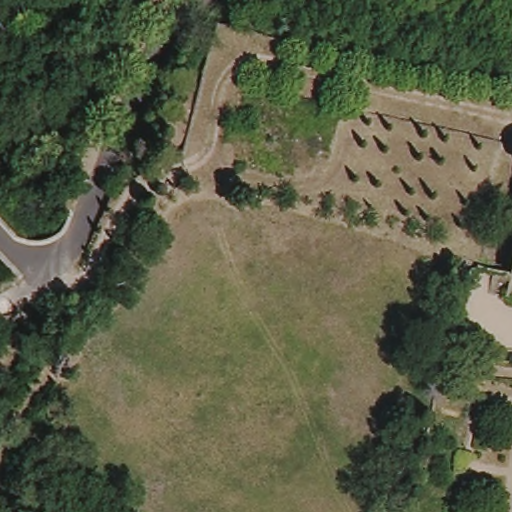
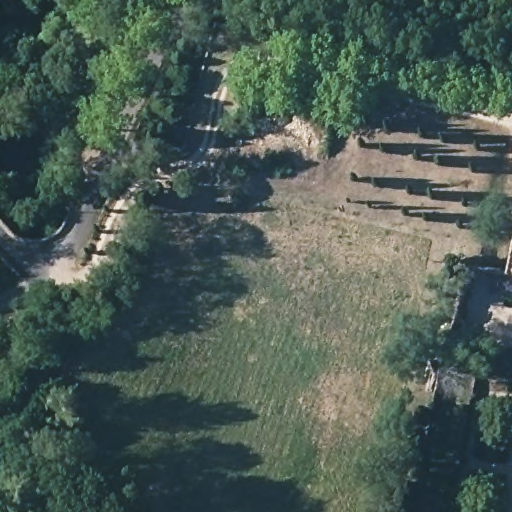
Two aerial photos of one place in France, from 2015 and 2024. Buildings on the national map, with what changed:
unchanged [(510,295),(512,284),(512,296),(510,295)]

